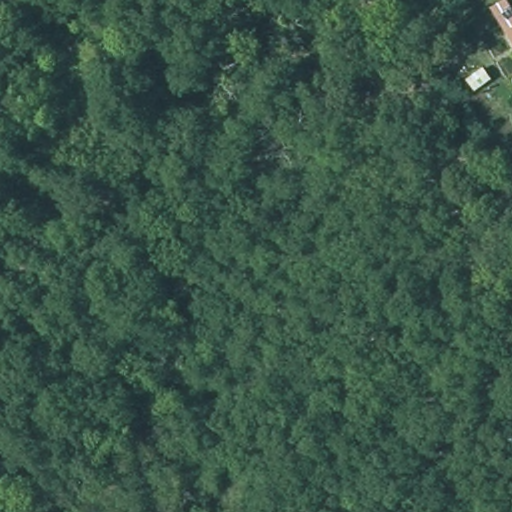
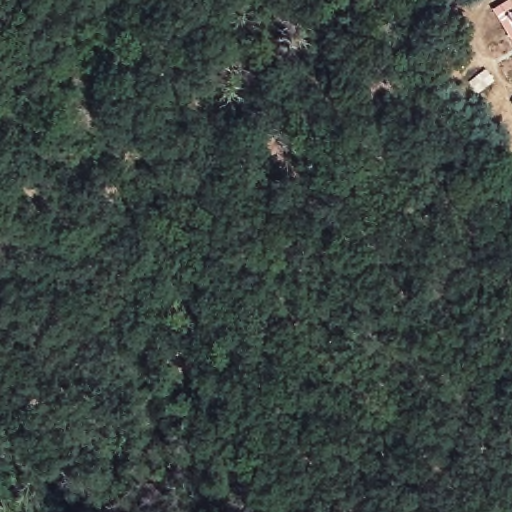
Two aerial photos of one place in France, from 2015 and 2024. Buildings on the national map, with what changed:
unchanged [(512,39),(508,34),(512,31),(512,39)]

